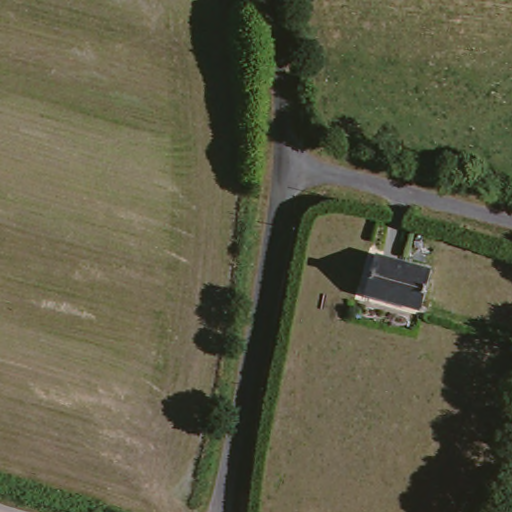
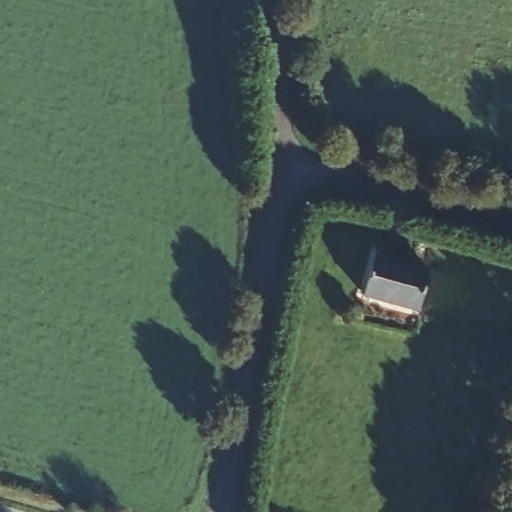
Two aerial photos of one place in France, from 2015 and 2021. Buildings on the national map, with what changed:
unchanged [(374,261),(428,275),(417,314),(363,301),(374,261)]

